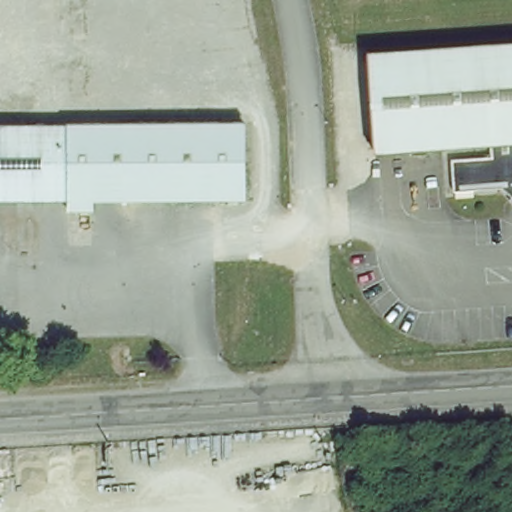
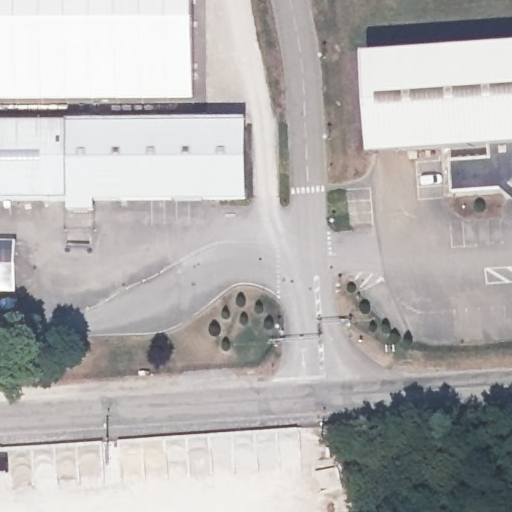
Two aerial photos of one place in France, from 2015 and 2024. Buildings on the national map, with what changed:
new [(0,103),(0,0),(193,0),(194,102),(0,103)]
unchanged [(511,203),(502,193),(455,196),(454,164),(490,161),(490,150),(375,155),(370,56),(512,47),(512,202),(511,203)]
unchanged [(249,232),(218,234),(215,197),(94,202),(95,214),(68,213),(67,200),(0,203),(0,128),(243,125),(249,232)]
new [(0,243),(15,244),(14,294),(0,293),(0,243)]

